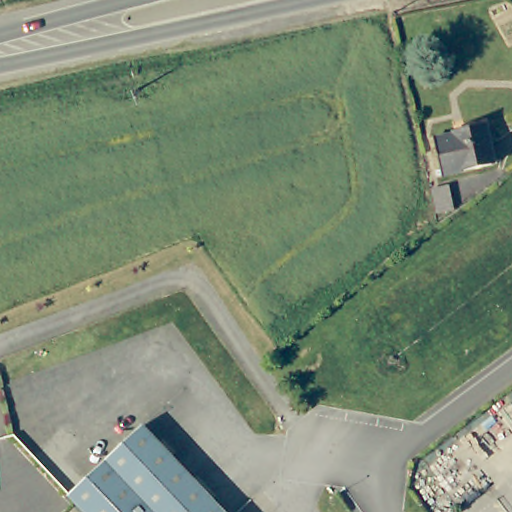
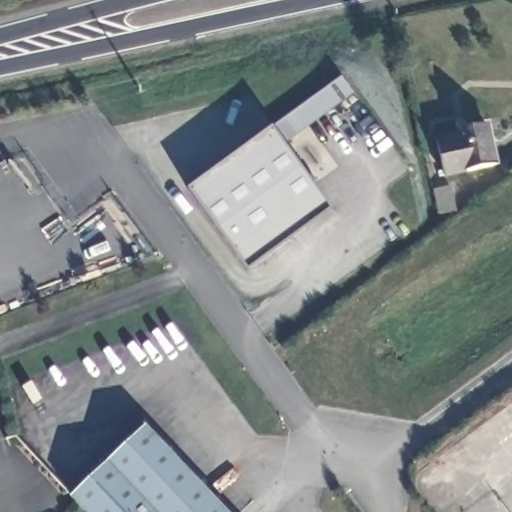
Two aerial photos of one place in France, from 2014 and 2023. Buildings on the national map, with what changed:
new [(247,269),(187,188),(271,127),(285,118),(297,133),(282,144),(329,208),(247,269)]
unchanged [(495,165),(444,176),(436,139),(465,133),(464,129),(486,124),(495,165)]
unchanged [(455,210),(439,214),(434,189),(450,186),(455,210)]
unchanged [(72,496),(145,426),(157,439),(225,512),(86,512),(79,504),(72,496)]

